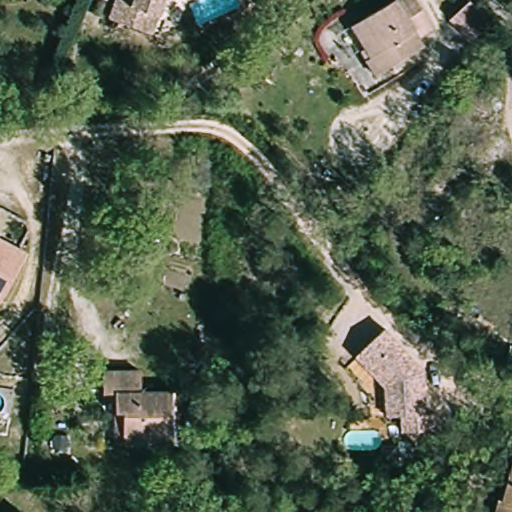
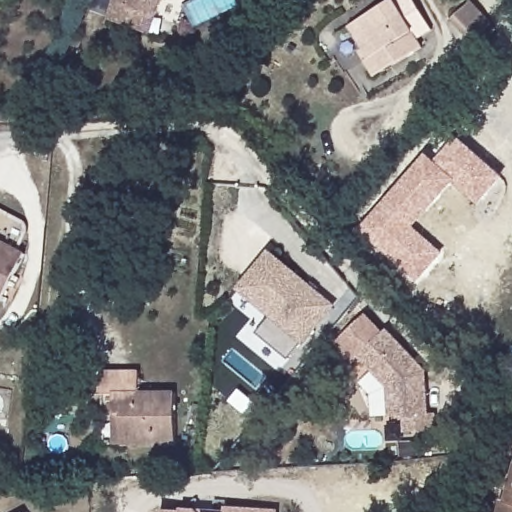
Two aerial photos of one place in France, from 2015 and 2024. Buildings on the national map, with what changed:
unchanged [(115,25),(122,0),(170,0),(163,16),(160,36),(150,34),(115,25)]
unchanged [(188,0),(199,0),(191,5),(188,0)]
unchanged [(422,51),(373,78),(363,60),(370,58),(352,21),(393,0),(419,0),(420,1),(435,32),(416,43),(422,51)]
new [(450,22),(470,3),(493,26),(473,45),(450,22)]
demolished [(445,41),(465,22),(488,45),(468,64),(445,41)]
new [(502,176),(478,205),(454,183),(414,226),(443,252),(417,282),(359,230),(428,155),(436,161),(457,135),(502,176)]
unchanged [(7,293),(0,289),(0,225),(34,245),(7,293)]
new [(301,344),(289,360),(255,332),(269,317),(237,289),(270,249),(337,305),(302,345),(301,344)]
new [(359,360),(352,368),(333,346),(367,314),(385,334),(359,360)]
unchanged [(430,415),(437,414),(440,431),(406,433),(404,416),(391,418),(387,386),(359,360),(388,330),(427,371),(430,415)]
unchanged [(112,412),(112,391),(102,391),(101,373),(139,373),(139,392),(173,392),(173,442),(127,443),(113,444),(112,412)]
unchanged [(502,495),(510,497),(512,492),(512,512),(497,512),(502,495)]
new [(160,510),(182,511),(182,509),(198,510),(225,510),(226,507),(280,510),(279,512),(160,512),(160,510)]
unchanged [(23,511),(24,512),(23,512),(23,511)]

